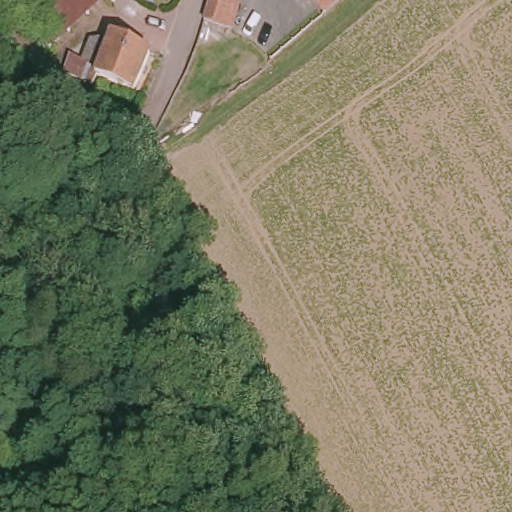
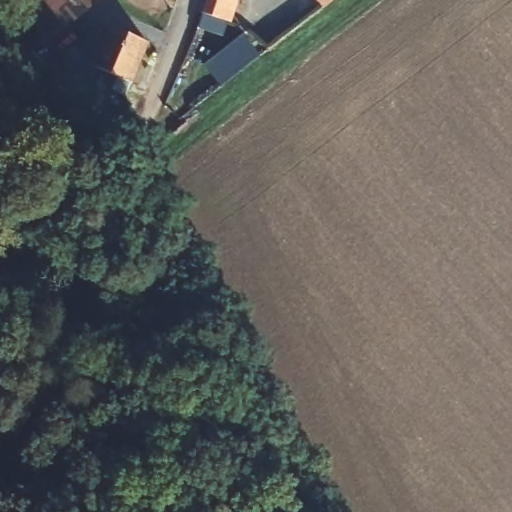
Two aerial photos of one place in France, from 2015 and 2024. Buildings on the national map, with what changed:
unchanged [(97,0),(100,3),(53,44),(15,0),(97,0)]
unchanged [(202,20),(208,0),(234,0),(226,27),(202,20)]
unchanged [(314,0),(318,0),(316,2),(314,0)]
unchanged [(98,64),(93,76),(63,65),(69,49),(82,53),(89,33),(113,26),(148,39),(133,79),(98,64)]
new [(222,87),(205,66),(244,35),(261,56),(222,87)]

